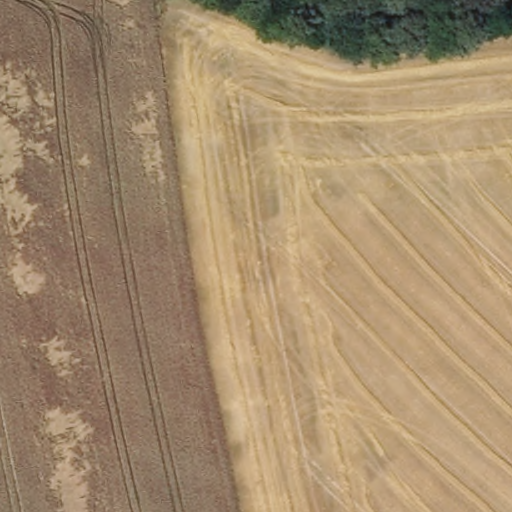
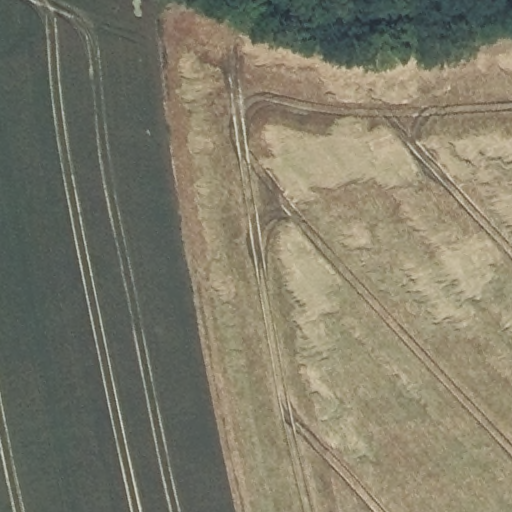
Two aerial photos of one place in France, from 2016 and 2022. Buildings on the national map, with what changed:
[]

